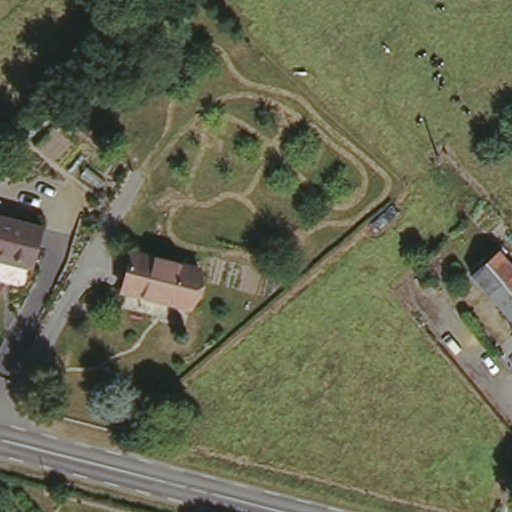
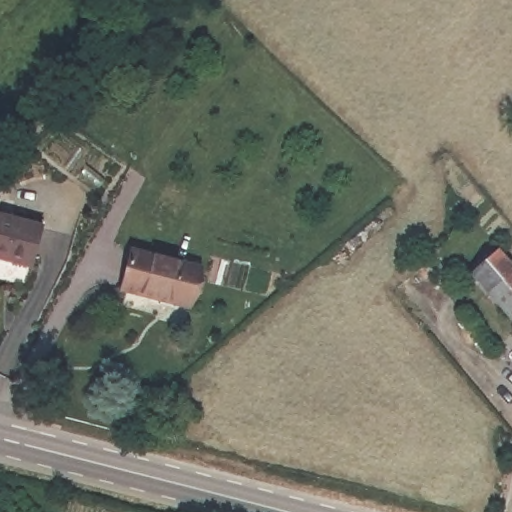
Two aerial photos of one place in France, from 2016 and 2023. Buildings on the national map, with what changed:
unchanged [(32,268),(0,260),(0,219),(41,229),(32,268)]
unchanged [(512,265),(512,324),(469,276),(498,249),(512,265)]
unchanged [(136,251),(202,269),(194,302),(168,296),(166,301),(127,291),(136,251)]

